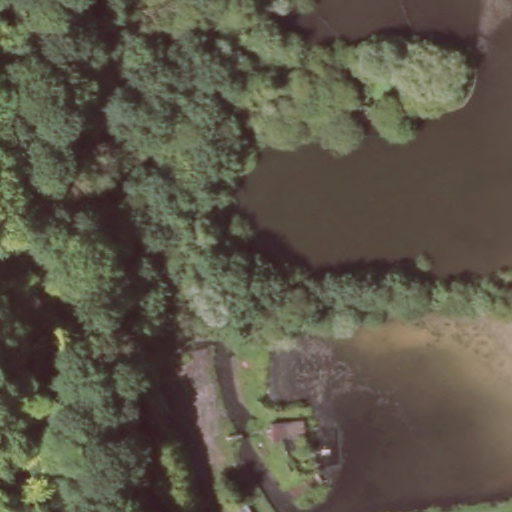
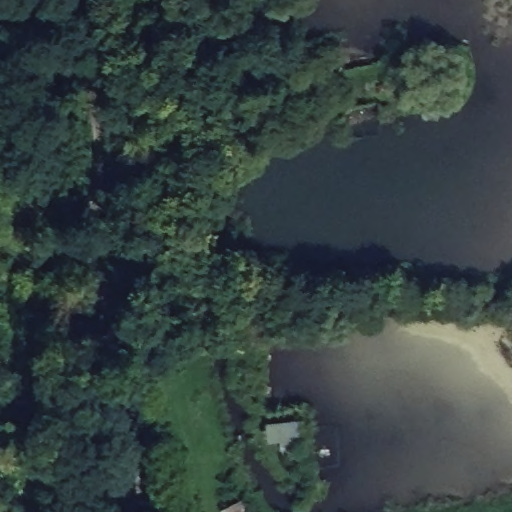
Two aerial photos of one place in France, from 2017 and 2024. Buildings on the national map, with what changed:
unchanged [(398,219),(383,222),(379,206),(394,204),(398,219)]
unchanged [(299,414),(299,438),(264,437),(262,414),(299,414)]
unchanged [(241,494),(249,512),(221,512),(217,504),(241,494)]

